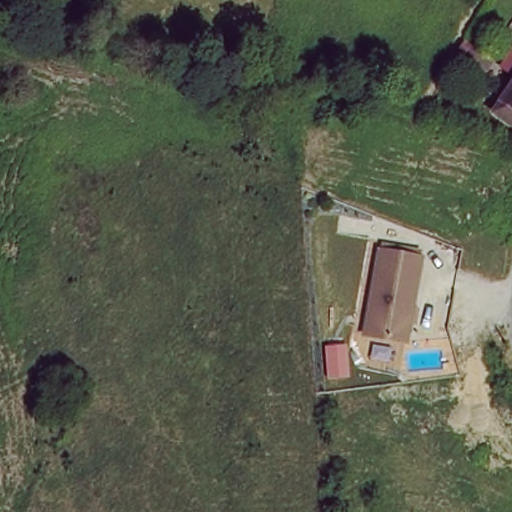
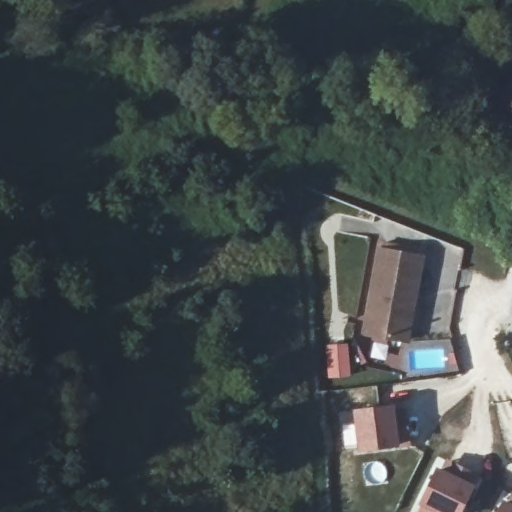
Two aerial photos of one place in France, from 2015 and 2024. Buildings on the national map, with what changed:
unchanged [(462,40),(485,53),(478,67),(454,54),(462,40)]
unchanged [(502,105),(500,103),(512,85),(512,127),(494,115),(502,105)]
unchanged [(413,336),(363,331),(377,243),(428,251),(413,336)]
new [(349,373),(331,375),(328,346),(347,345),(349,373)]
new [(411,444),(399,445),(358,450),(353,408),(394,403),(395,407),(406,406),(411,444)]
new [(474,484),(462,512),(438,512),(419,502),(437,465),(442,467),(446,456),(480,473),(474,484)]
new [(497,512),(504,498),(507,500),(511,490),(512,491),(512,512),(497,512)]

